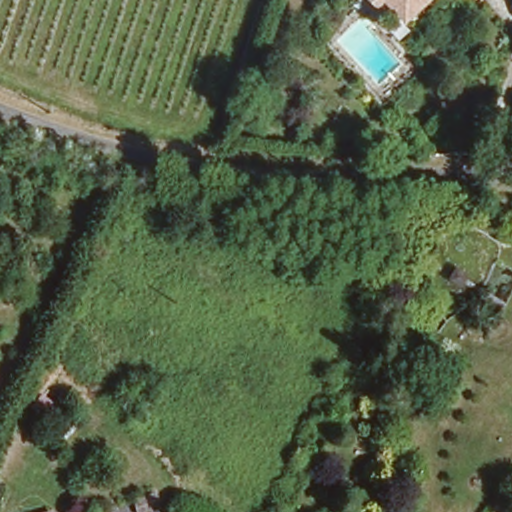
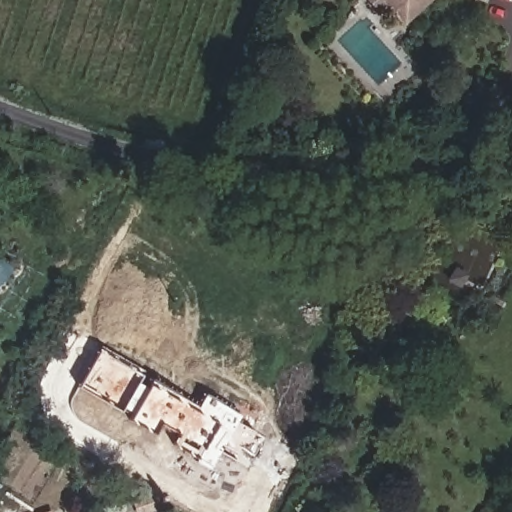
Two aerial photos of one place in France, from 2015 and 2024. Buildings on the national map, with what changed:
unchanged [(402,27),(383,7),(375,12),(363,0),(434,0),(402,27)]
new [(98,351),(102,346),(146,370),(142,374),(199,405),(205,393),(242,414),(237,422),(256,432),(254,433),(261,437),(251,456),(240,448),(235,459),(220,451),(209,470),(194,461),(197,457),(172,444),(178,434),(160,424),(155,434),(129,420),(131,416),(121,410),(77,386),(98,351)]
unchanged [(143,487),(146,496),(148,502),(132,508),(127,493),(136,489),(143,487)]
unchanged [(53,512),(30,512),(52,506),(53,512)]

